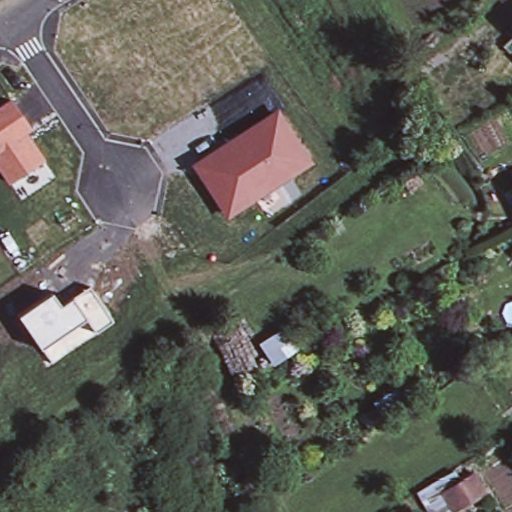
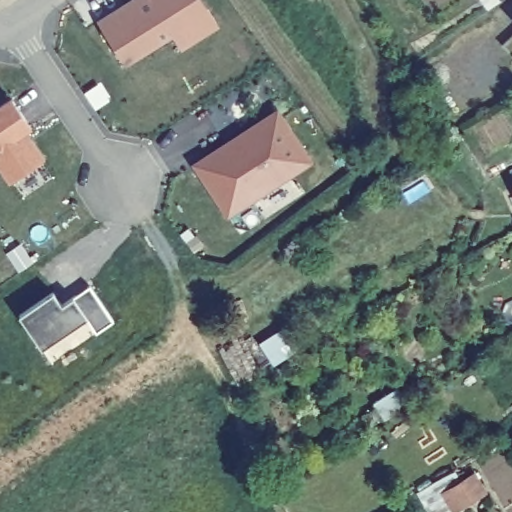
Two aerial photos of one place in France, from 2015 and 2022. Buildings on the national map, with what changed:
new [(182,45),(172,31),(125,61),(100,21),(132,0),(199,0),(205,10),(215,24),(182,45)]
unchanged [(11,179),(0,162),(0,107),(10,99),(45,154),(11,179)]
unchanged [(228,217),(192,165),(278,108),(313,162),(228,217)]
unchanged [(94,331),(83,320),(42,347),(22,315),(55,293),(62,304),(90,287),(111,319),(94,331)]
unchanged [(288,327),(296,347),(272,357),(264,337),(288,327)]
unchanged [(404,406),(383,420),(375,408),(395,394),(404,406)]
unchanged [(462,512),(428,512),(417,495),(456,470),(463,479),(475,471),(492,495),(462,512)]

